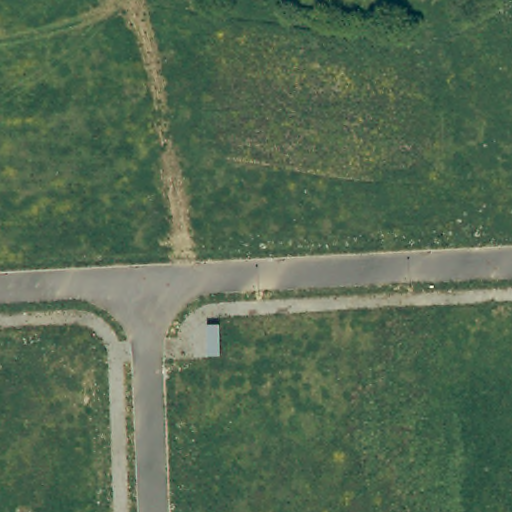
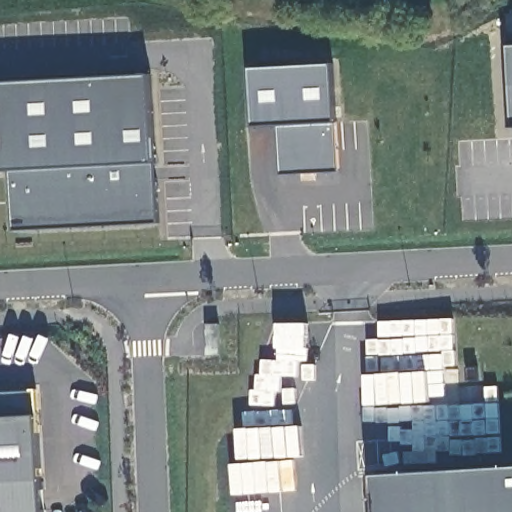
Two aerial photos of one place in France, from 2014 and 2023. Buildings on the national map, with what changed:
new [(512,44),(512,86),(510,45),(512,44)]
new [(332,66),(334,122),(339,171),(282,174),(277,126),(253,127),(250,70),(332,66)]
new [(155,165),(157,224),(14,230),(11,171),(0,172),(0,84),(149,75),(155,165)]
new [(36,415),(43,512),(0,512),(0,393),(34,392),(36,415)]
new [(512,468),(512,512),(379,512),(377,478),(512,468)]

